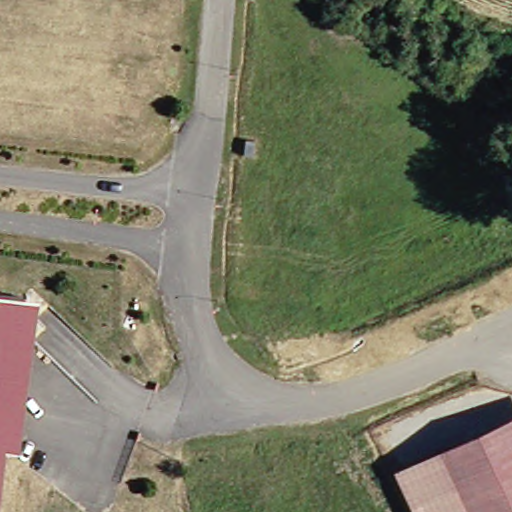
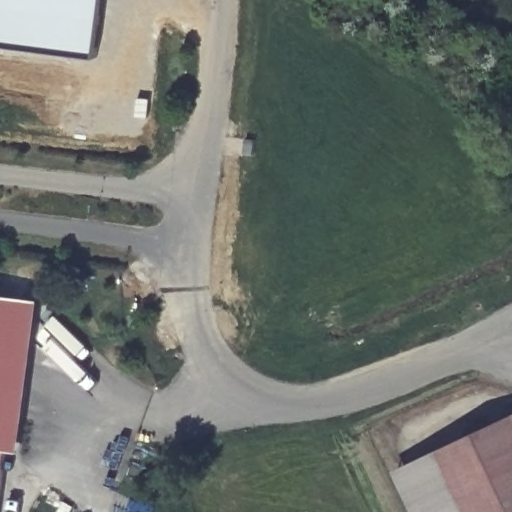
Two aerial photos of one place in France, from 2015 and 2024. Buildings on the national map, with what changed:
new [(97,57),(0,44),(0,0),(105,0),(97,57)]
unchanged [(246,139),(256,140),(254,155),(245,154),(246,139)]
unchanged [(0,471),(0,295),(24,298),(3,448),(0,471)]
unchanged [(24,298),(36,300),(16,451),(3,448),(24,298)]
unchanged [(471,512),(442,450),(512,417),(512,512),(471,512)]
unchanged [(465,512),(413,512),(393,470),(436,448),(439,457),(465,512)]

